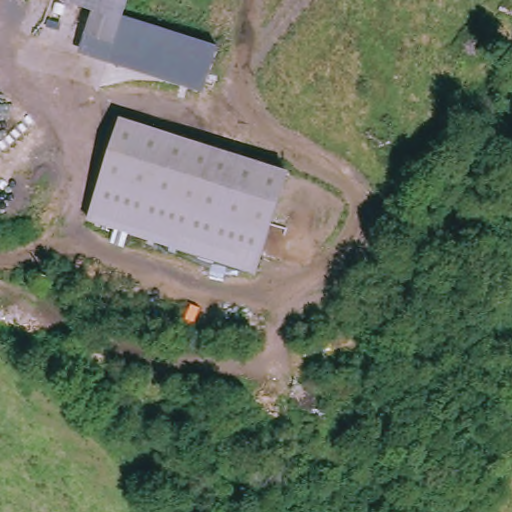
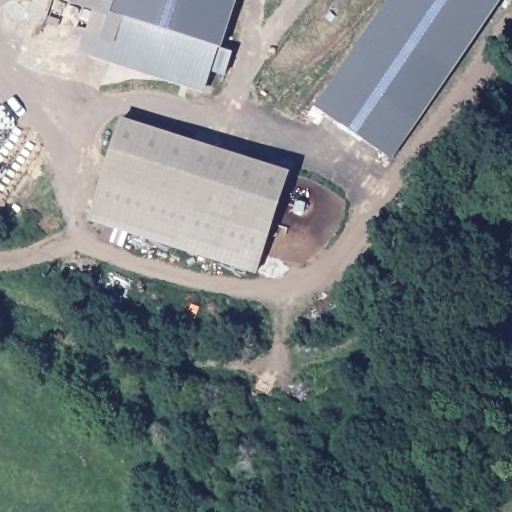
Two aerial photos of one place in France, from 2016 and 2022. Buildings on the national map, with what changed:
unchanged [(81,35),(88,13),(51,0),(125,0),(109,45),(81,35)]
new [(119,17),(125,0),(234,0),(218,48),(119,17)]
new [(492,0),(382,157),(305,103),(377,0),(492,0)]
unchanged [(218,48),(202,94),(78,54),(85,37),(109,45),(119,17),(218,48)]
unchanged [(256,276),(88,220),(121,121),(289,176),(256,276)]

